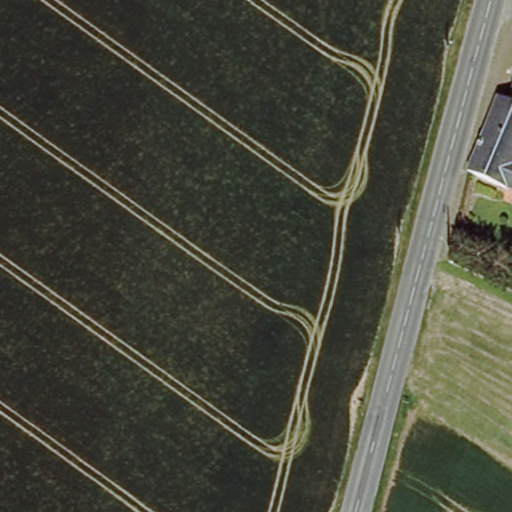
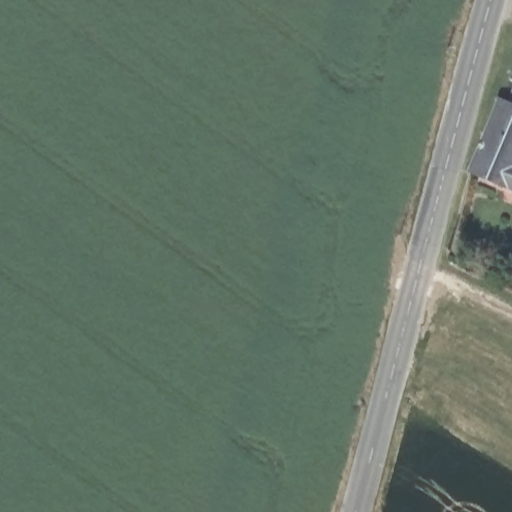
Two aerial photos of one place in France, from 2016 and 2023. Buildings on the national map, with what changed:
unchanged [(462,174),(512,73),(512,198),(462,174)]

